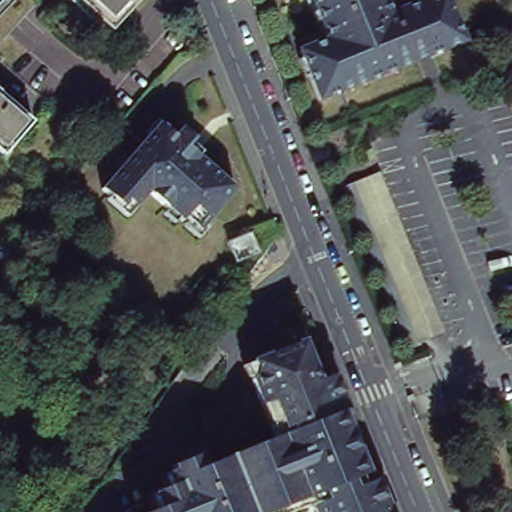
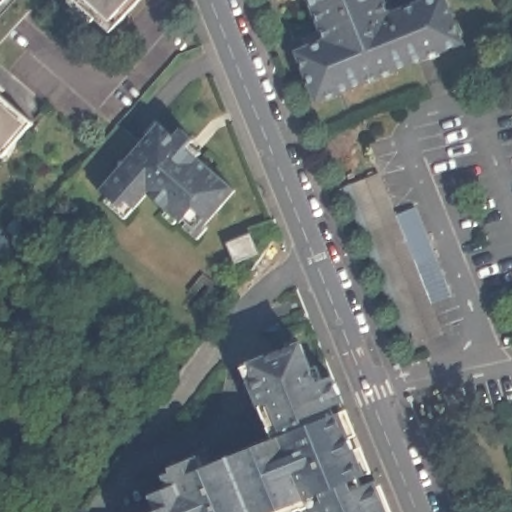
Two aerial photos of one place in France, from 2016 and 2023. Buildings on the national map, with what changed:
unchanged [(40,0),(0,43),(0,3),(3,0),(40,0)]
unchanged [(74,0),(141,0),(111,34),(74,0)]
unchanged [(311,0),(384,0),(390,14),(426,0),(445,0),(462,43),(318,100),(298,51),(327,40),(311,0)]
unchanged [(34,123),(4,156),(0,154),(0,93),(34,123)]
unchanged [(159,123),(175,136),(181,129),(194,140),(188,147),(236,189),(201,230),(186,218),(182,222),(149,193),(136,207),(127,199),(121,205),(102,189),(159,123)]
unchanged [(378,169),(443,329),(415,340),(351,180),(378,169)]
unchanged [(18,237),(8,229),(19,216),(29,224),(18,237)]
unchanged [(16,239),(9,248),(0,261),(0,225),(16,239)]
unchanged [(258,252),(235,263),(227,242),(252,232),(258,252)]
unchanged [(309,496),(269,512),(254,512),(231,455),(279,437),(267,407),(254,375),(258,369),(255,362),(304,342),(322,387),(339,380),(347,400),(333,406),(336,415),(344,413),(353,436),(348,438),(352,449),(358,447),(368,471),(362,474),(365,483),(378,477),(389,503),(382,505),(384,512),(315,512),(309,496)]
unchanged [(162,506),(155,490),(173,483),(168,473),(180,467),(178,463),(204,453),(208,463),(231,455),(254,512),(146,512),(162,506)]

